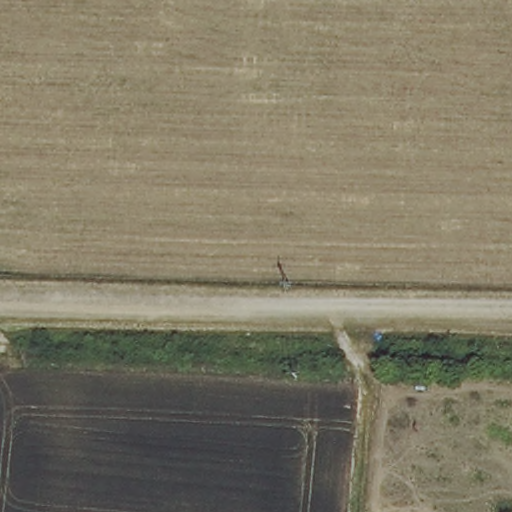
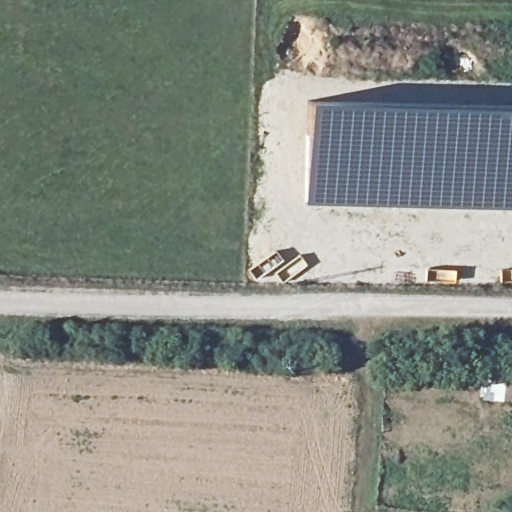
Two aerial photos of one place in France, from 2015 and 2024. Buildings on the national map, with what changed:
new [(303,99),(332,98),(379,100),(495,102),(512,103),(512,212),(301,206),(303,99)]

